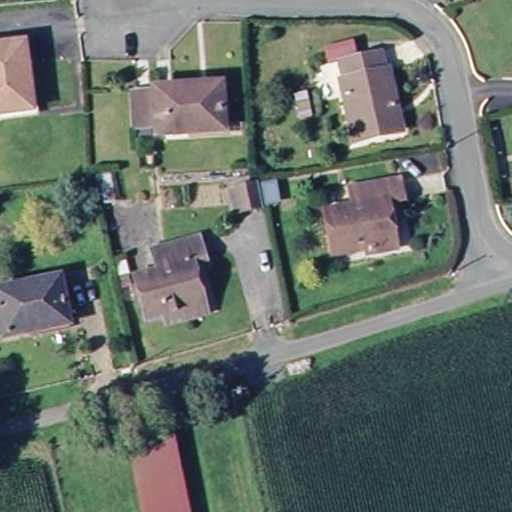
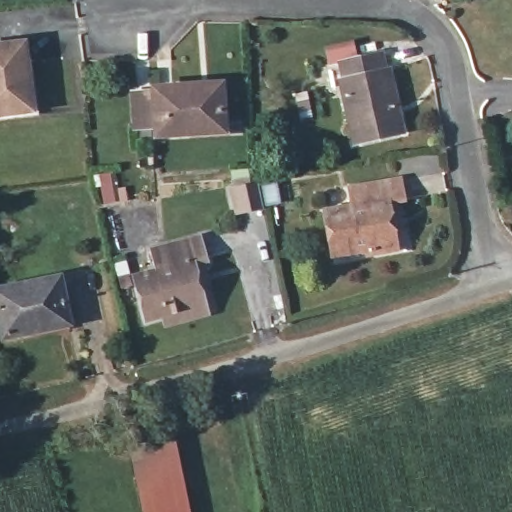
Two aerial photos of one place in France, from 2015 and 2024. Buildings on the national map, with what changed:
unchanged [(0,116),(0,51),(21,49),(31,111),(0,116)]
unchanged [(395,136),(352,147),(339,89),(346,87),(342,65),(380,55),(384,77),(394,75),(402,112),(406,134),(395,136)]
unchanged [(131,99),(154,95),(153,89),(215,81),(223,125),(160,135),(138,139),(131,99)]
unchanged [(277,202),(250,206),(245,182),(272,176),(277,202)]
unchanged [(403,194),(385,200),(398,250),(368,257),(365,249),(334,255),(323,213),(350,206),(347,190),(398,179),(403,194)]
unchanged [(162,322),(159,314),(144,318),(132,274),(158,268),(153,249),(200,235),(204,254),(191,257),(205,302),(207,309),(162,322)]
unchanged [(24,332),(0,339),(0,294),(58,277),(68,321),(70,333),(27,345),(24,332)]
unchanged [(146,512),(133,449),(175,442),(190,512),(146,512)]

